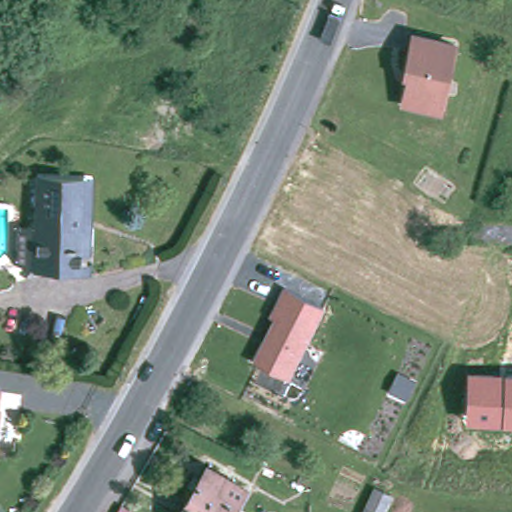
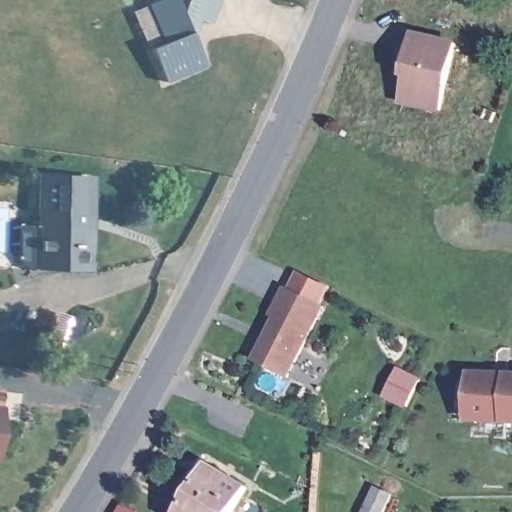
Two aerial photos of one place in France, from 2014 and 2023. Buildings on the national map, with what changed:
new [(187,0),(219,0),(208,25),(199,22),(192,38),(204,67),(163,84),(149,50),(145,52),(129,14),(148,6),(163,0),(176,0),(182,14),(187,0)]
unchanged [(410,77),(406,77),(413,37),(456,44),(444,110),(406,104),(410,77)]
unchanged [(40,262),(34,267),(20,257),(24,248),(24,221),(43,219),(44,173),(88,175),(96,176),(94,224),(94,245),(93,264),(87,264),(40,262)]
unchanged [(324,307),(289,378),(252,360),(271,321),(266,319),(281,288),(324,307)]
unchanged [(512,424),(466,422),(467,371),(512,373),(512,424)]
unchanged [(5,392),(0,428),(0,392),(5,392)]
unchanged [(246,491),(233,512),(182,512),(209,467),(246,491)]
unchanged [(371,497),(376,489),(394,497),(405,503),(401,512),(365,512),(371,497)]

